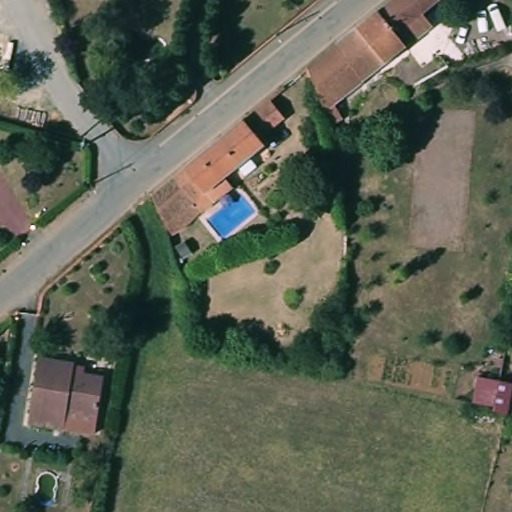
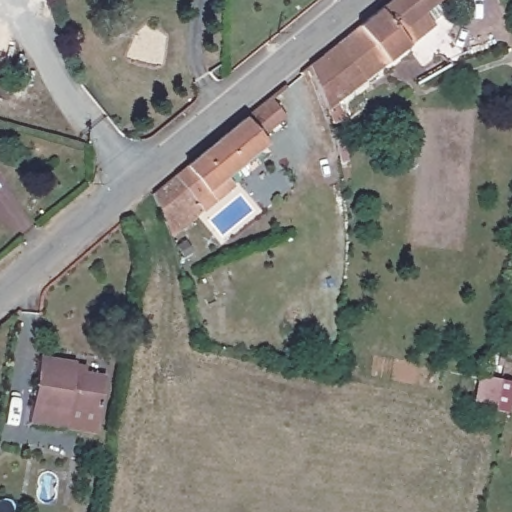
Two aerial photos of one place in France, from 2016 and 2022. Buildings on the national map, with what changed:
unchanged [(330,122),(328,113),(325,106),(308,64),(370,15),(388,0),(436,0),(422,10),(431,24),(377,65),(332,100),(341,114),(330,122)]
unchanged [(512,26),(511,25),(512,24),(512,26)]
unchanged [(201,210),(173,233),(156,192),(200,156),(248,116),(274,95),(286,111),(260,134),(267,142),(224,177),(231,187),(201,210)]
unchanged [(76,360),(75,367),(106,371),(100,411),(69,407),(66,426),(31,421),(42,353),(76,360)]

